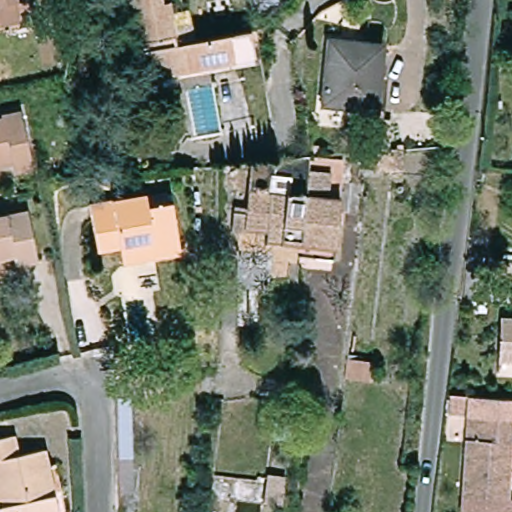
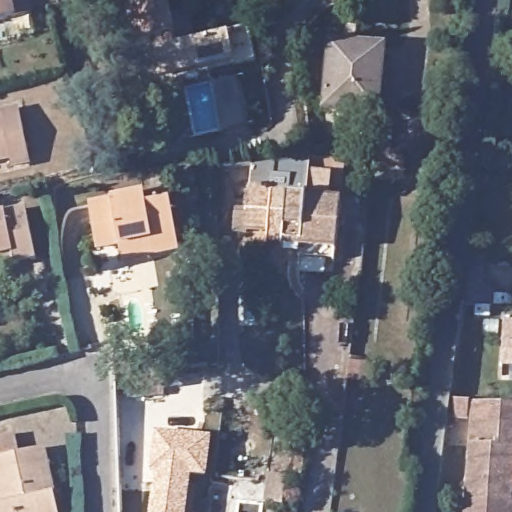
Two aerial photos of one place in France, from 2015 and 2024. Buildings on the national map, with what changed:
unchanged [(0,25),(0,0),(35,0),(39,15),(0,25)]
unchanged [(181,69),(162,73),(157,50),(146,52),(134,0),(179,0),(186,41),(234,33),(239,58),(240,64),(183,75),(181,69)]
unchanged [(325,104),(333,39),(363,42),(389,45),(388,52),(382,111),(325,104)]
unchanged [(1,115),(1,108),(19,104),(32,157),(15,162),(13,157),(0,160),(0,115),(1,115)]
unchanged [(313,158),(339,160),(335,194),(252,182),(255,162),(313,158)]
unchanged [(290,252),(292,241),(271,237),(255,235),(257,225),(233,222),(240,181),(252,182),(335,194),(326,246),(324,257),(290,252)]
unchanged [(123,247),(100,251),(93,206),(149,197),(150,208),(175,205),(183,255),(159,258),(125,264),(123,247)]
unchanged [(23,212),(32,262),(9,266),(0,267),(0,215),(23,212)]
unchanged [(507,320),(512,320),(512,363),(504,362),(507,320)]
unchanged [(347,381),(349,357),(379,360),(376,383),(347,381)]
unchanged [(465,500),(473,401),(494,402),(502,402),(500,423),(512,424),(512,462),(511,481),(512,481),(512,503),(509,503),(465,500)]
new [(192,477),(188,512),(150,512),(156,472),(149,472),(155,430),(214,437),(208,479),(192,477)]
unchanged [(0,500),(0,437),(16,433),(22,455),(47,449),(52,467),(57,466),(68,512),(3,512),(0,500)]
unchanged [(277,511),(266,510),(271,475),(291,476),(286,512),(277,512),(277,511)]

